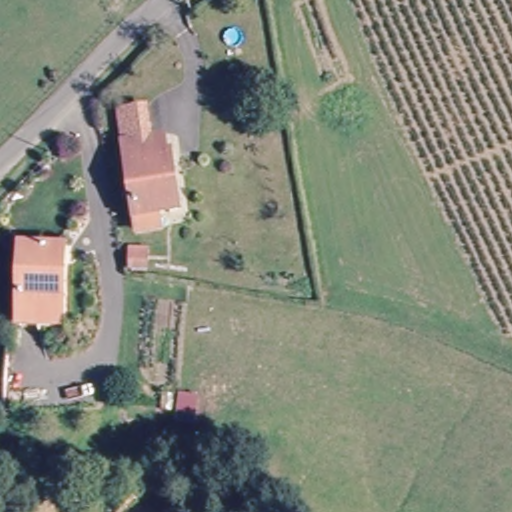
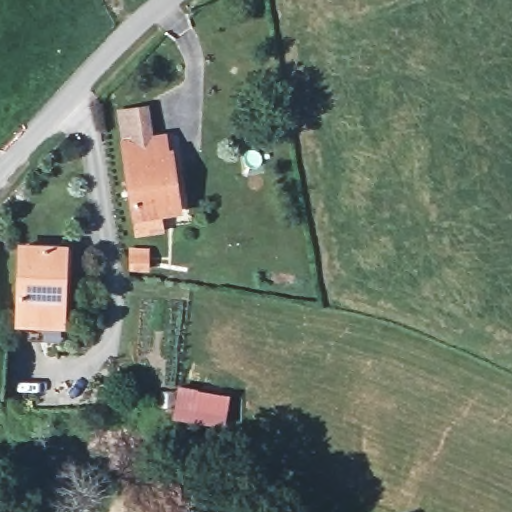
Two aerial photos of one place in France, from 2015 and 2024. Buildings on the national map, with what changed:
unchanged [(134,237),(131,221),(120,147),(115,116),(141,113),(146,144),(160,141),(162,159),(165,159),(174,215),(153,218),(156,234),(134,237)]
unchanged [(14,318),(15,302),(17,242),(58,244),(56,304),(55,320),(14,318)]
unchanged [(149,250),(149,267),(130,267),(130,250),(149,250)]
new [(227,396),(227,421),(186,422),(186,417),(175,417),(175,390),(195,390),(227,396)]

